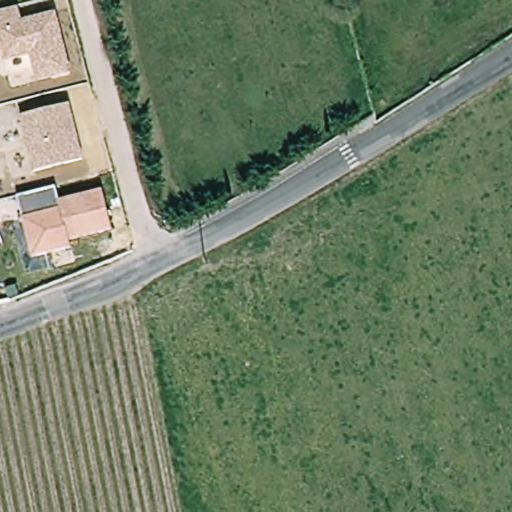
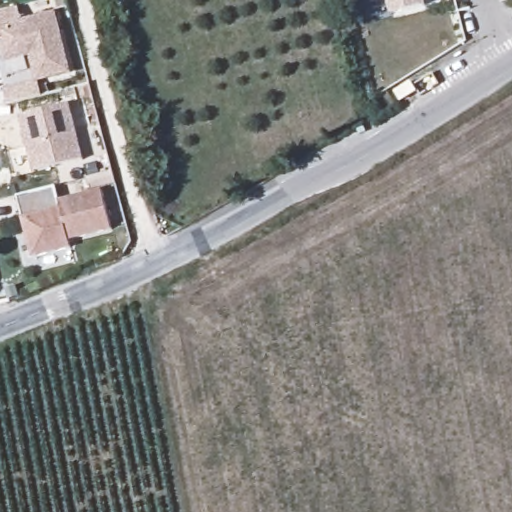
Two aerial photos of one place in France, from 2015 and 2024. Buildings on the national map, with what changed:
new [(389,15),(385,0),(424,0),(425,6),(389,15)]
unchanged [(56,11),(71,71),(37,79),(30,56),(5,62),(0,42),(0,11),(19,6),(23,20),(56,11)]
unchanged [(21,116),(69,105),(83,159),(34,171),(21,116)]
unchanged [(111,230),(70,240),(72,247),(32,258),(17,196),(55,187),(58,200),(102,190),(111,230)]

